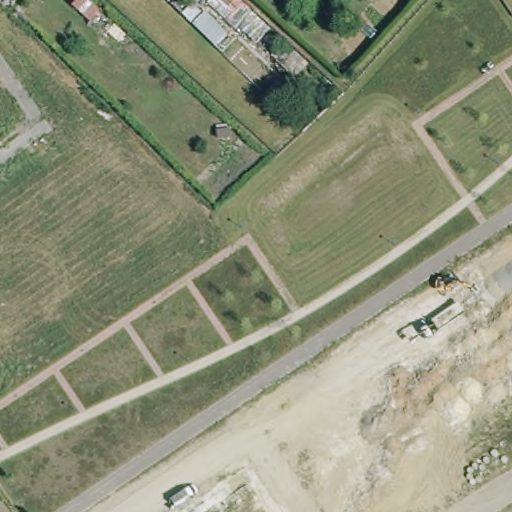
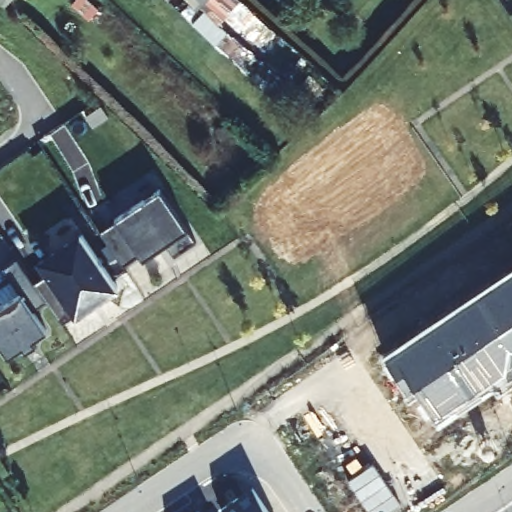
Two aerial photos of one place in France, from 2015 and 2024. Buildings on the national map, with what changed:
demolished [(316,75),(339,96),(327,109),(305,87),(316,75)]
new [(120,217),(162,189),(187,228),(196,240),(174,254),(167,242),(142,257),(140,254),(124,264),(102,231),(120,217)]
new [(38,281),(19,251),(65,221),(112,293),(66,324),(38,281)]
new [(32,307),(47,330),(34,338),(37,344),(26,351),(22,345),(8,354),(0,342),(0,304),(20,290),(5,265),(17,256),(47,300),(32,307)]
new [(512,264),(512,374),(439,423),(414,386),(406,391),(384,353),(512,264)]
new [(269,512),(223,512),(222,509),(253,488),(269,512)]

